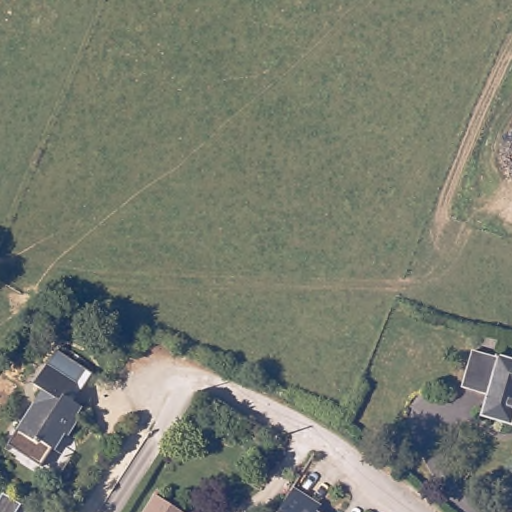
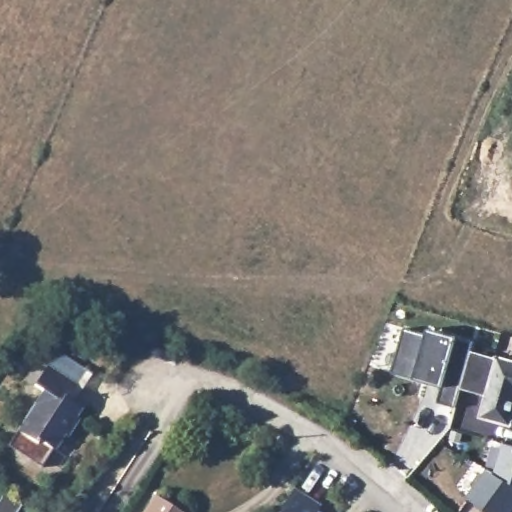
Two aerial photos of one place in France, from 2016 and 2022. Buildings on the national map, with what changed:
new [(439,404),(443,387),(392,374),(405,329),(428,335),(430,329),(476,341),(457,409),(439,404)]
unchanged [(501,357),(502,355),(512,357),(512,420),(485,412),(490,394),(465,386),(475,350),(501,357)]
unchanged [(85,408),(78,418),(81,420),(70,437),(67,435),(57,450),(54,449),(42,466),(10,444),(45,391),(37,386),(50,366),(60,351),(90,371),(80,385),(71,399),(85,408)]
new [(508,444),(512,445),(512,481),(500,475),(508,444)]
new [(473,497),(492,471),(500,475),(512,481),(512,512),(494,512),(473,497)]
unchanged [(277,497),(283,486),(285,484),(312,502),(307,508),(313,512),(267,512),(277,497)]
unchanged [(161,493),(167,497),(190,512),(149,512),(161,493)]

